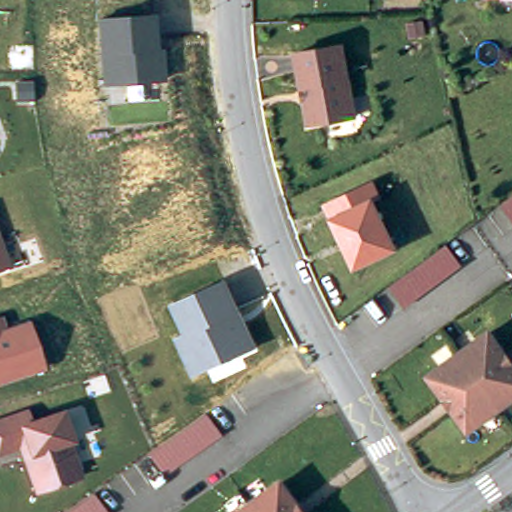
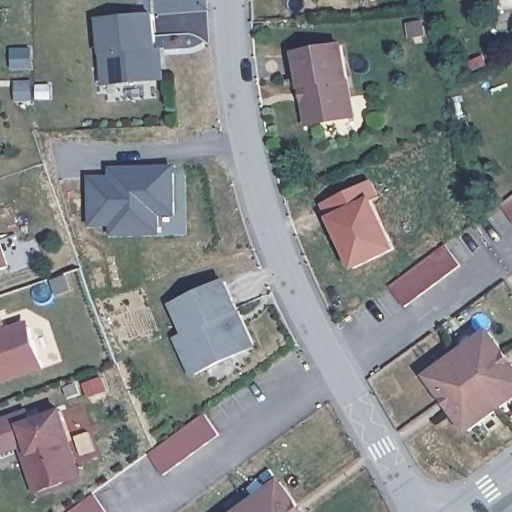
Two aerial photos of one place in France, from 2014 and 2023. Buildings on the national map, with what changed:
unchanged [(157,15),(158,50),(165,49),(167,78),(103,84),(97,20),(157,15)]
unchanged [(290,55),(337,47),(350,119),(302,126),(298,105),(296,90),(290,55)]
new [(107,167),(175,165),(176,217),(160,217),(160,234),(110,234),(110,226),(88,227),(87,176),(107,176),(107,167)]
unchanged [(323,202),(370,180),(377,195),(371,197),(393,246),(353,265),(345,247),(337,231),(323,202)]
unchanged [(510,227),(495,207),(512,195),(512,226),(510,227)]
unchanged [(0,267),(0,239),(9,263),(0,267)]
unchanged [(460,263),(403,303),(387,282),(445,241),(460,263)]
unchanged [(259,346),(193,376),(177,341),(184,336),(170,304),(228,278),(259,346)]
unchanged [(0,386),(0,317),(2,316),(5,328),(28,320),(45,370),(0,386)]
unchanged [(427,374),(488,330),(505,352),(512,362),(512,363),(512,396),(467,428),(450,406),(443,396),(427,374)]
unchanged [(66,408),(78,441),(86,475),(36,494),(20,449),(0,455),(0,419),(28,408),(34,418),(66,408)]
unchanged [(222,435),(163,478),(145,453),(205,410),(222,435)]
unchanged [(304,512),(240,512),(282,481),(304,512)]
unchanged [(67,512),(93,492),(107,512),(67,512)]

